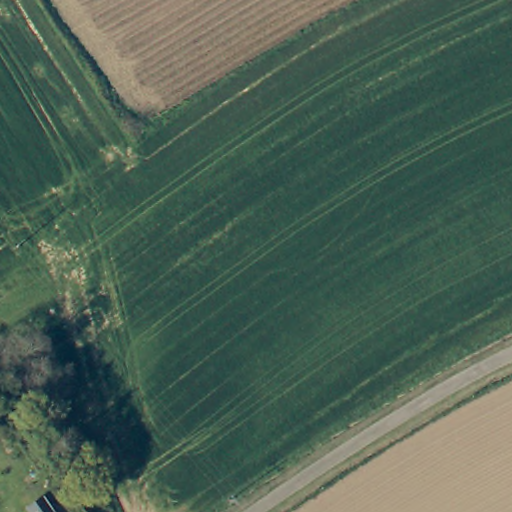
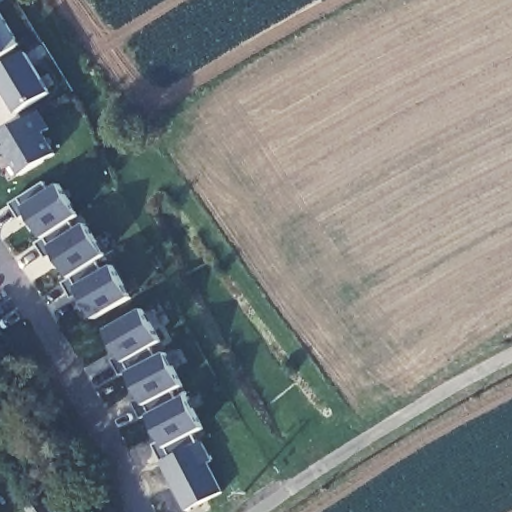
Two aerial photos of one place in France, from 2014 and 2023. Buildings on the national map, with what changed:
new [(1,12),(20,44),(0,56),(0,13),(1,12)]
new [(26,52),(51,93),(19,112),(3,86),(0,87),(0,68),(26,52)]
new [(39,112),(49,129),(42,133),(55,154),(21,175),(8,154),(0,159),(0,135),(39,112)]
new [(43,183),(49,190),(59,184),(79,216),(70,223),(77,230),(87,223),(106,256),(97,262),(103,270),(113,264),(131,298),(93,319),(78,293),(72,297),(63,283),(70,279),(53,252),(46,256),(37,243),(43,238),(28,214),(20,218),(11,203),(43,183)]
new [(160,341),(149,348),(155,358),(167,353),(183,385),(170,392),(176,400),(186,395),(204,428),(193,433),(197,443),(202,441),(212,459),(207,462),(223,491),(186,511),(159,461),(162,459),(155,446),(163,443),(149,415),(142,418),(134,402),(141,399),(129,371),(120,374),(113,360),(120,357),(106,329),(143,310),(160,341)]
unchanged [(44,498),(54,512),(30,512),(27,509),(44,498)]

